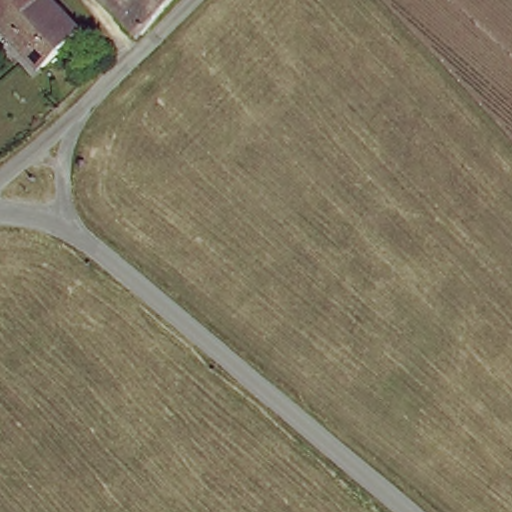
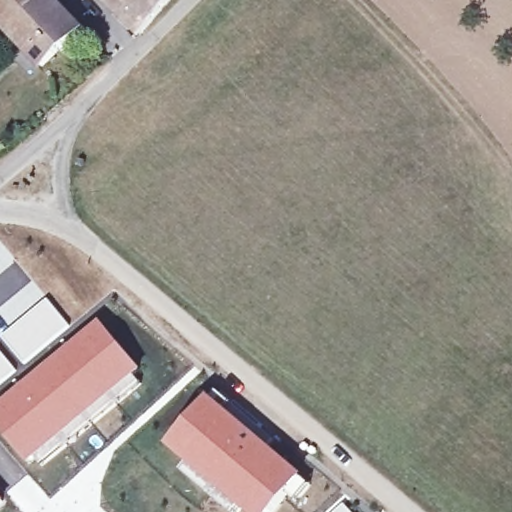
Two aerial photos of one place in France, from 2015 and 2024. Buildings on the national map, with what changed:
unchanged [(11,12),(0,1),(0,0),(24,0),(11,12)]
unchanged [(43,67),(0,22),(0,1),(11,12),(24,0),(53,0),(82,30),(43,67)]
unchanged [(140,40),(102,0),(174,0),(140,40)]
new [(48,298),(72,327),(25,366),(1,338),(48,298)]
new [(67,437),(27,465),(0,431),(0,406),(100,320),(143,371),(136,376),(143,384),(70,440),(67,437)]
new [(0,386),(0,350),(18,371),(0,386)]
new [(311,483),(298,498),(289,493),(273,512),(241,512),(220,496),(166,447),(211,395),(311,483)]
new [(0,504),(0,495),(5,500),(0,504)]
new [(354,512),(328,512),(343,499),(354,512)]

